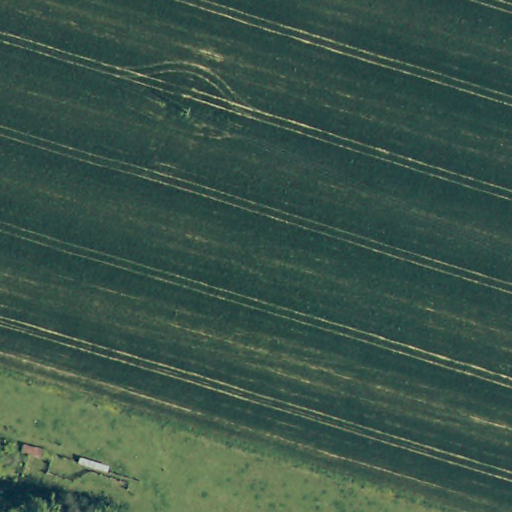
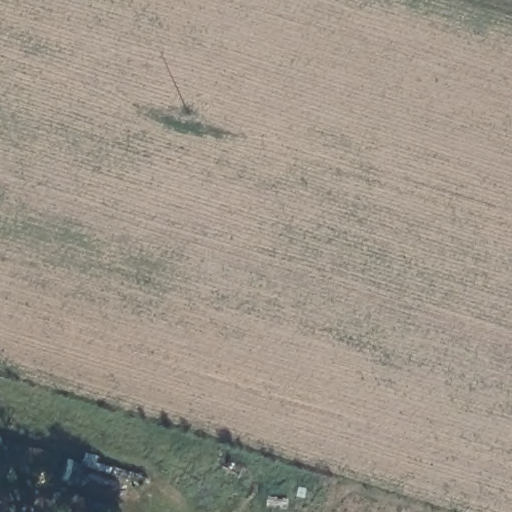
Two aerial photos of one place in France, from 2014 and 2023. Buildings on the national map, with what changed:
[]

